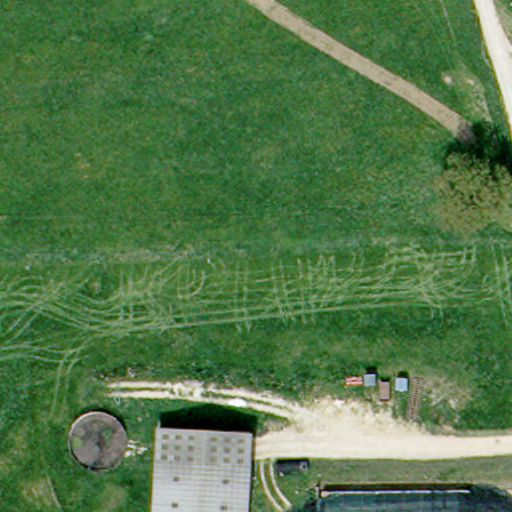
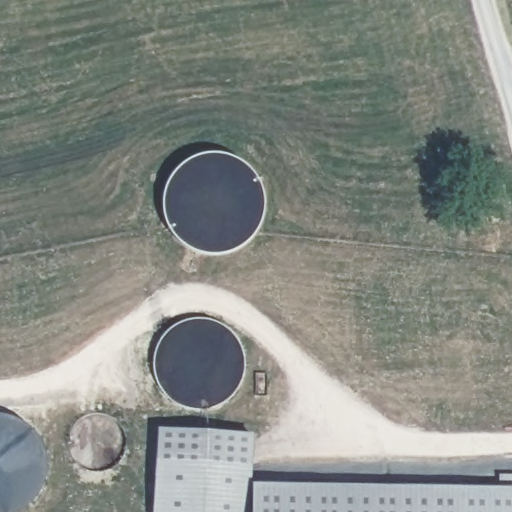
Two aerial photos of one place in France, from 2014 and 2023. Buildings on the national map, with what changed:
unchanged [(253,433),(251,464),(157,459),(158,429),(253,433)]
unchanged [(157,459),(251,464),(248,512),(154,512),(157,459)]
new [(512,487),(512,512),(248,512),(249,482),(512,487)]

